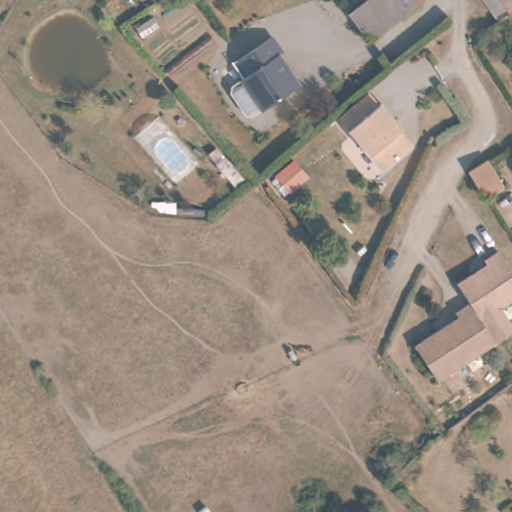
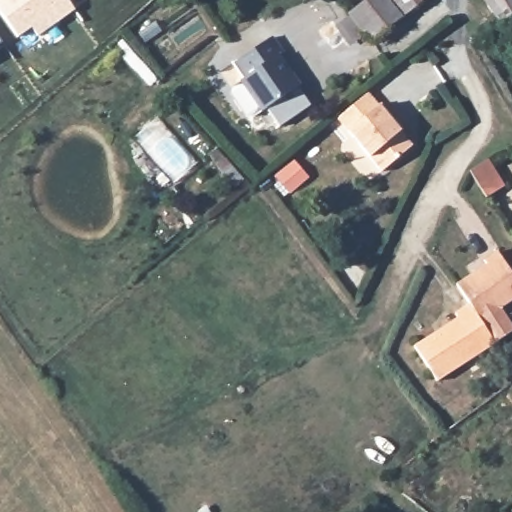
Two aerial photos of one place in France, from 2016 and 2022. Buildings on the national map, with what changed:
new [(32,26),(17,36),(0,13),(0,0),(69,0),(75,8),(39,35),(32,26)]
unchanged [(384,0),(400,18),(374,39),(354,15),(373,0),(384,0)]
unchanged [(400,18),(384,0),(429,0),(405,21),(400,18)]
unchanged [(512,0),(512,16),(500,23),(484,0),(512,0)]
unchanged [(281,34),(292,50),(288,53),(307,80),(261,114),(240,86),(252,76),(251,75),(255,71),(246,59),(281,34)]
new [(0,43),(0,39),(2,41),(0,43)]
unchanged [(380,109),(382,107),(395,123),(393,125),(412,148),(382,174),(339,123),(370,96),(380,109)]
unchanged [(505,191),(486,202),(468,173),(487,162),(505,191)]
unchanged [(454,287),(485,268),(482,263),(496,254),(512,280),(512,301),(498,310),(512,333),(433,383),(411,347),(455,320),(452,315),(467,307),(454,287)]

